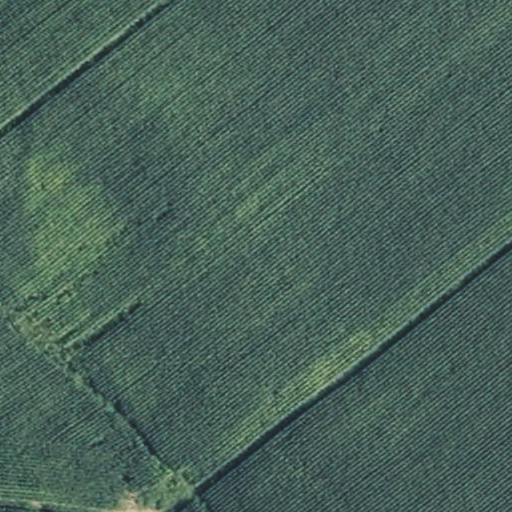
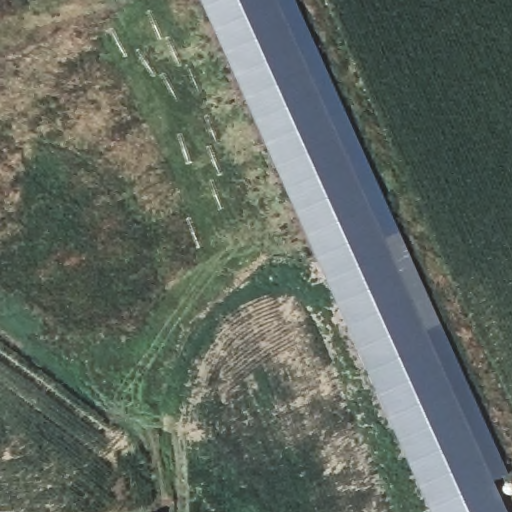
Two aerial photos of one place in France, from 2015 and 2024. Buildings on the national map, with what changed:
new [(509,473),(496,481),(508,512),(431,512),(201,0),(294,0),(509,473)]

